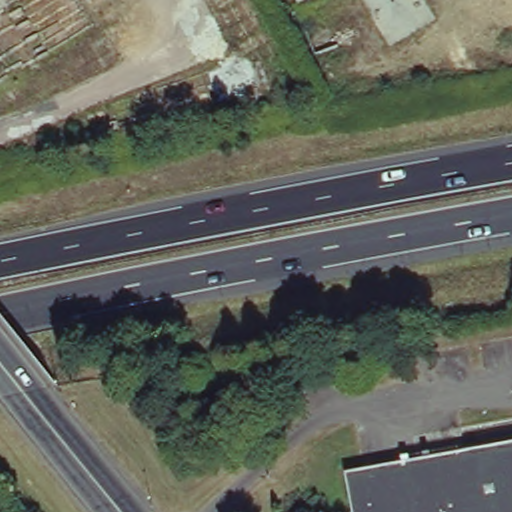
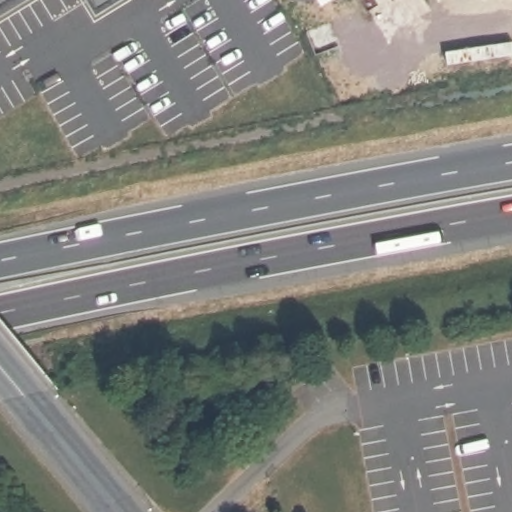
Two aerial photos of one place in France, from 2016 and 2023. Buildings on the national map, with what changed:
new [(96,4),(93,0),(103,0),(96,4)]
demolished [(512,445),(512,512),(354,512),(347,476),(512,445)]

